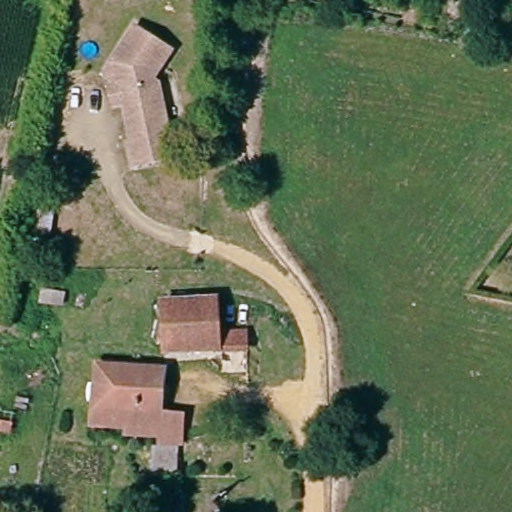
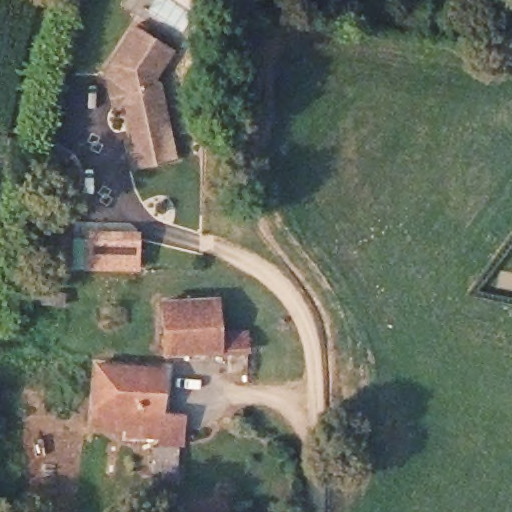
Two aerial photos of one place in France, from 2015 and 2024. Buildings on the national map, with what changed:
unchanged [(171,153),(132,160),(128,141),(132,140),(125,96),(120,97),(112,98),(110,83),(117,81),(116,75),(106,68),(136,23),(171,47),(150,76),(157,81),(162,104),(167,134),(171,153)]
new [(84,268),(84,229),(140,229),(140,269),(84,268)]
unchanged [(167,303),(208,302),(221,302),(223,334),(248,333),(249,348),(237,349),(167,351),(167,340),(167,303)]
unchanged [(103,362),(167,365),(165,433),(159,432),(135,432),(136,422),(100,421),(100,403),(103,362)]

